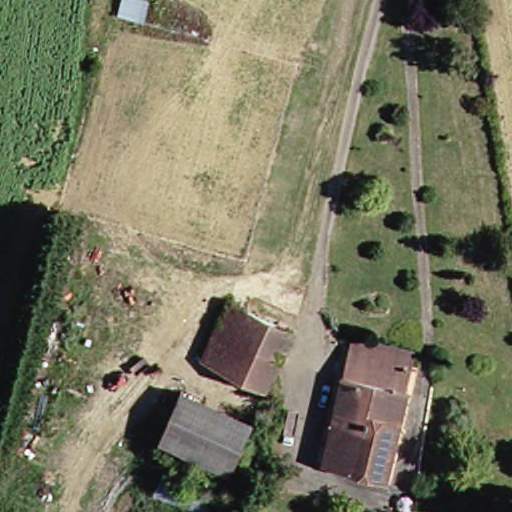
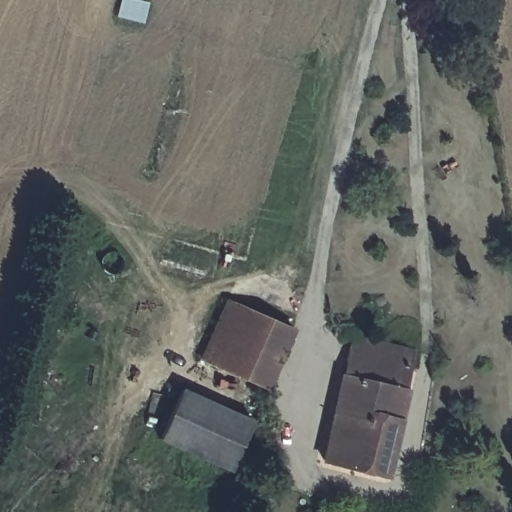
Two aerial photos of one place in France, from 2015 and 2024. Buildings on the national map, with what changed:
unchanged [(300,324),(273,382),(227,360),(210,353),(236,295),(255,304),(300,324)]
unchanged [(329,462),(360,339),(414,353),(425,355),(422,365),(394,478),(329,462)]
unchanged [(262,420),(239,474),(169,441),(192,390),(262,420)]
unchanged [(210,512),(188,512),(146,497),(157,473),(217,493),(210,512)]

